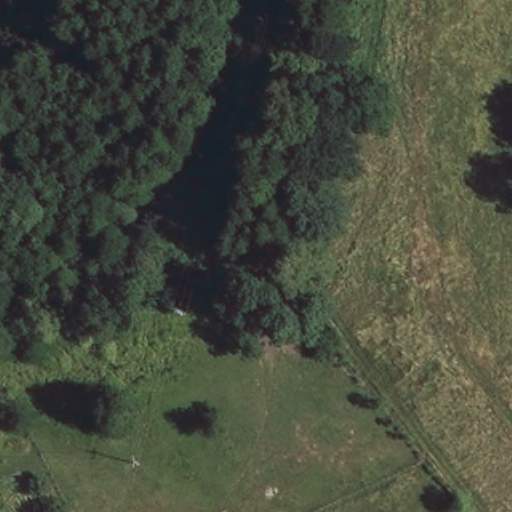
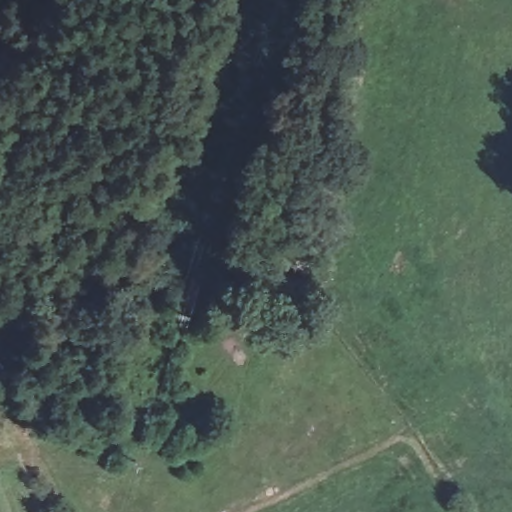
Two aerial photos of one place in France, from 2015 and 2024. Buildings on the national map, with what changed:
[]

